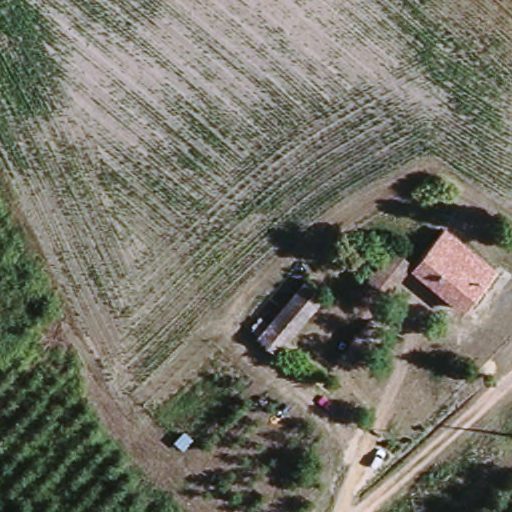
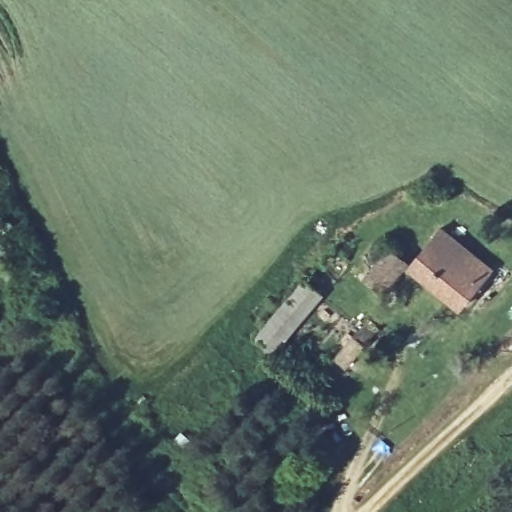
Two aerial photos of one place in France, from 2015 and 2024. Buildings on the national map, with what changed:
unchanged [(393,246),(412,261),(444,227),(496,268),(461,310),(409,268),(387,294),(367,278),(393,246)]
unchanged [(337,304),(288,360),(270,345),(321,289),(337,304)]
unchanged [(347,365),(384,323),(394,332),(357,374),(347,365)]

